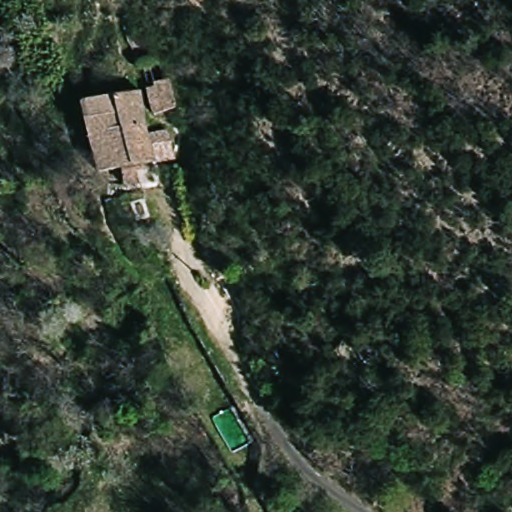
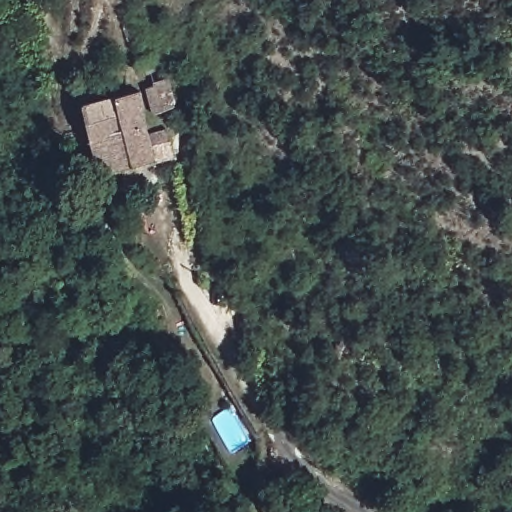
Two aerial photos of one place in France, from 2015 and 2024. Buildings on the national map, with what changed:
unchanged [(178,109),(155,115),(146,86),(171,78),(178,109)]
unchanged [(177,160),(136,171),(139,186),(123,190),(118,173),(98,176),(80,103),(142,93),(149,133),(170,128),(177,160)]
unchanged [(135,212),(154,209),(162,249),(143,253),(135,212)]

